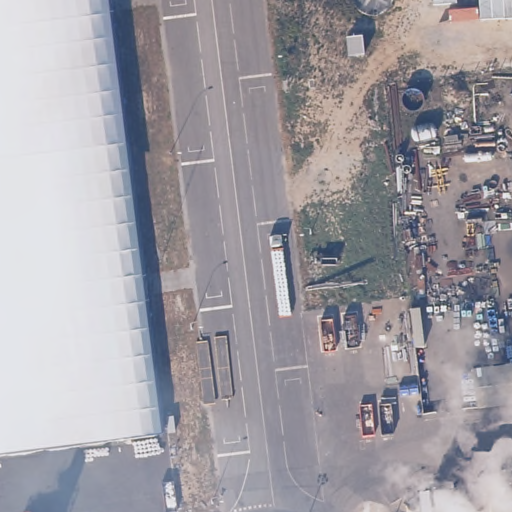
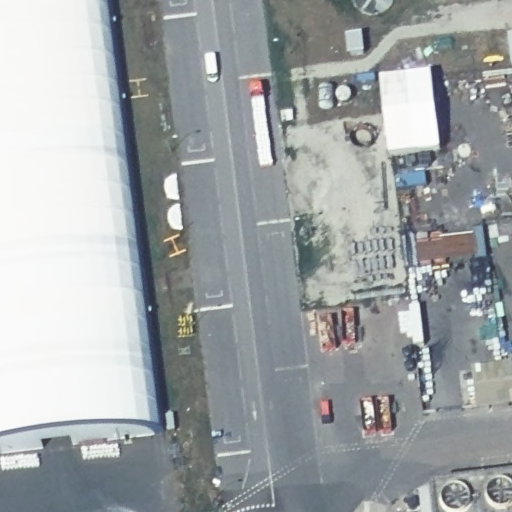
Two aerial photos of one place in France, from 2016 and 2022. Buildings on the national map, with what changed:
unchanged [(0,0),(112,0),(167,433),(0,451),(0,0)]
new [(433,72),(443,153),(389,159),(380,81),(433,72)]
unchanged [(496,397),(495,376),(512,374),(512,396),(496,397)]
unchanged [(507,492),(508,492),(509,492),(511,492),(512,493),(512,512),(486,512),(486,510),(487,508),(487,506),(487,505),(487,503),(488,502),(489,501),(490,499),(492,497),(493,496),(495,495),(497,494),(498,493),(500,492),(501,492),(503,492),(505,492),(506,492),(507,492)]
unchanged [(462,498),(464,498),(465,498),(466,498),(467,498),(470,500),(471,500),(472,501),(472,502),(474,503),(476,505),(477,507),(478,508),(479,510),(480,512),(443,512),(443,511),(445,507),(447,506),(447,505),(448,504),(448,503),(450,502),(451,502),(452,501),(453,500),(455,499),(457,498),(458,498),(459,498),(461,498),(462,498)]

